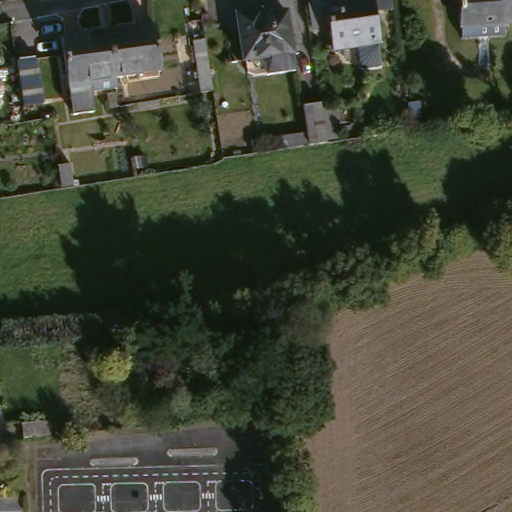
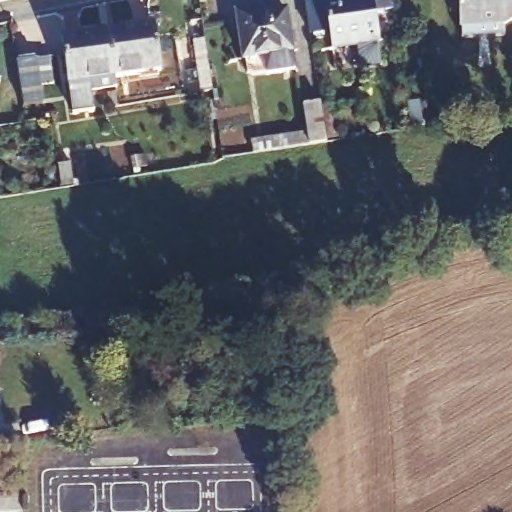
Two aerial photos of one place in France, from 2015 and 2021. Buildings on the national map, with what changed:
unchanged [(327,0),(370,0),(382,68),(359,71),(356,50),(320,57),(312,3),(327,0)]
unchanged [(464,37),(464,27),(461,0),(512,0),(512,21),(506,25),(506,38),(464,37)]
unchanged [(263,76),(260,59),(240,62),(233,19),(256,14),(259,18),(283,14),(289,54),(291,71),(263,76)]
unchanged [(60,92),(62,79),(62,38),(105,37),(153,37),(150,82),(111,81),(105,80),(104,94),(60,92)]
unchanged [(212,86),(198,89),(190,46),(204,44),(212,86)]
unchanged [(14,61),(34,58),(42,103),(22,107),(21,102),(14,61)]
unchanged [(319,110),(333,108),(338,135),(324,143),(322,137),(308,139),(304,118),(306,112),(319,110)]
unchanged [(420,108),(424,127),(409,129),(406,110),(420,108)]
unchanged [(70,164),(72,187),(60,189),(58,166),(70,164)]
unchanged [(45,420),(46,432),(19,435),(17,423),(45,420)]

